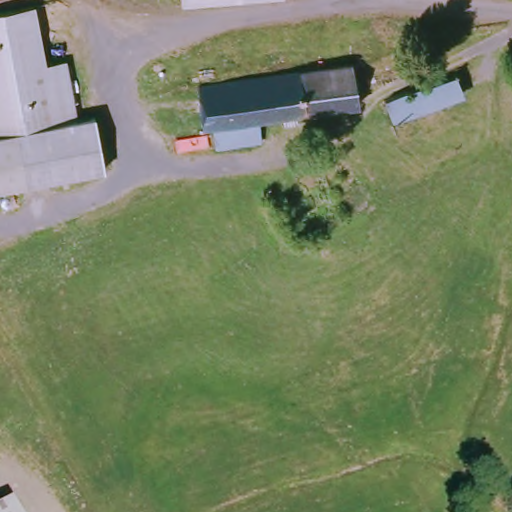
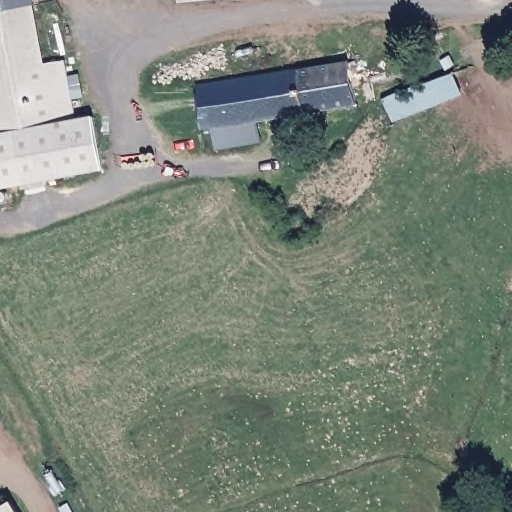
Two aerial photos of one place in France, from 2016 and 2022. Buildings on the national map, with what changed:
unchanged [(186,0),(230,0),(187,7),(186,0)]
unchanged [(0,15),(32,10),(42,68),(65,66),(74,121),(90,121),(99,174),(0,188),(0,15)]
unchanged [(195,132),(192,91),(345,64),(348,91),(350,105),(251,124),(254,145),(210,154),(207,132),(195,132)]
unchanged [(11,512),(0,512),(0,505),(5,502),(11,512)]

